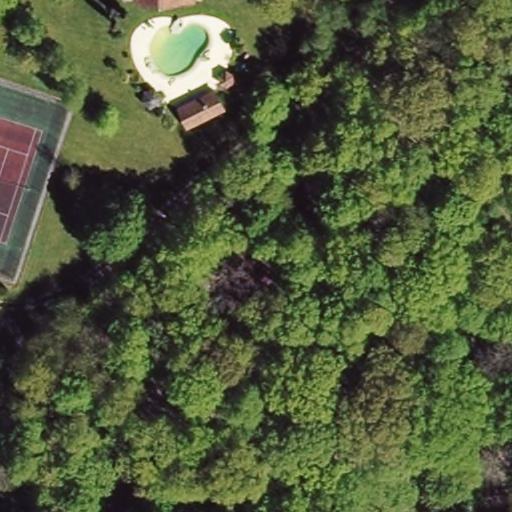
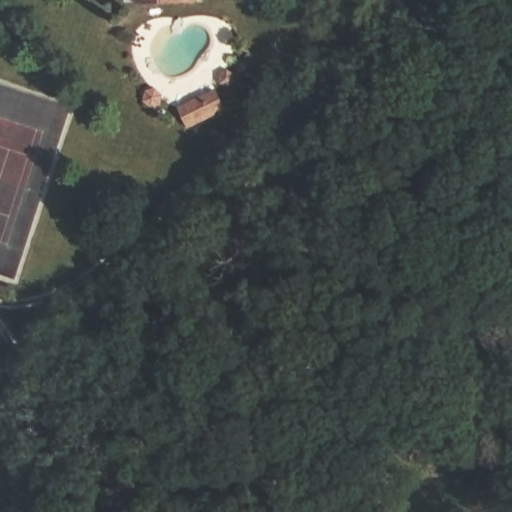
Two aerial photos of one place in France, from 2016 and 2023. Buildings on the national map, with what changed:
unchanged [(215,87),(225,105),(191,124),(181,105),(215,87)]

